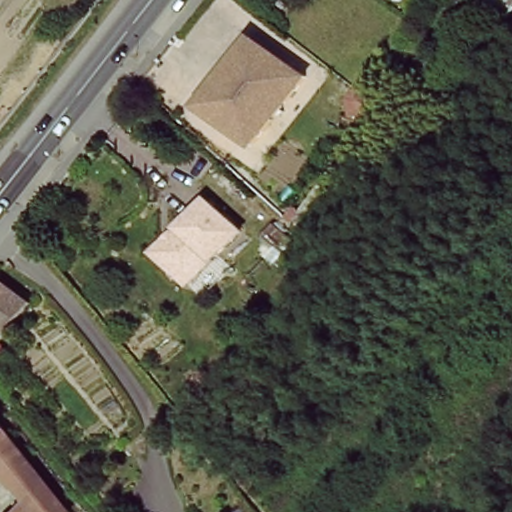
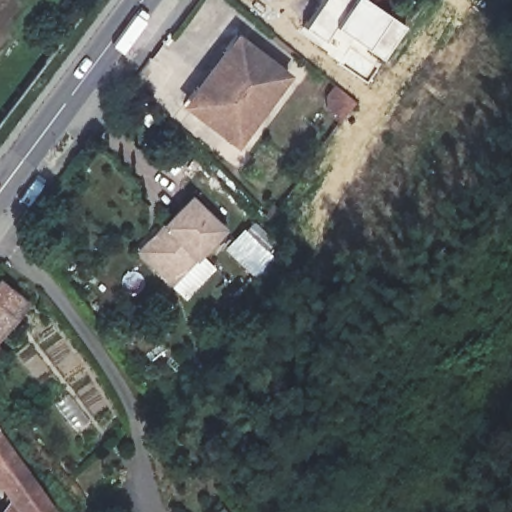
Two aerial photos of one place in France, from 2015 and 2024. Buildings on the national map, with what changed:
new [(321,0),(349,0),(333,26),(323,41),(303,27),(321,0)]
new [(349,0),(370,0),(407,25),(383,60),(333,26),(349,0)]
unchanged [(241,42),(286,80),(229,146),(184,108),(241,42)]
unchanged [(144,255),(169,227),(193,201),(234,238),(184,292),(151,262),(144,255)]
new [(281,245),(258,272),(231,250),(255,222),(281,245)]
unchanged [(0,332),(0,280),(26,300),(0,332)]
unchanged [(28,512),(12,490),(0,474),(0,433),(51,504),(53,509),(50,512),(28,512)]
unchanged [(2,512),(8,506),(4,498),(12,490),(28,512),(2,512)]
unchanged [(51,512),(50,512),(53,509),(51,512)]

